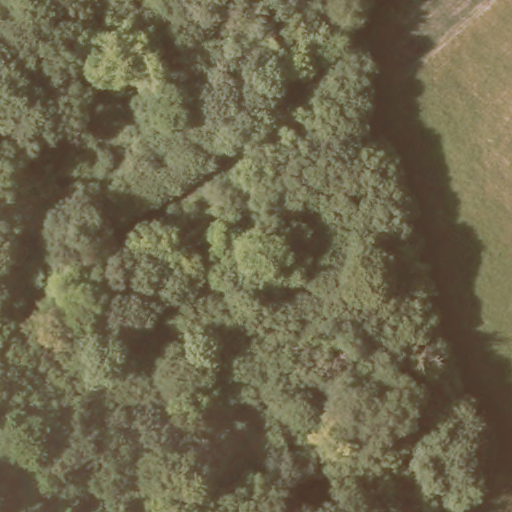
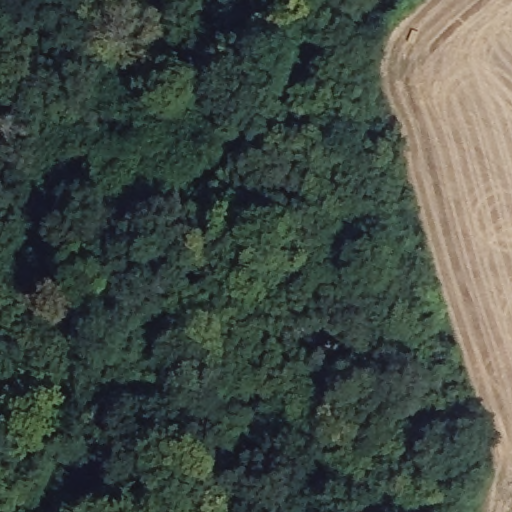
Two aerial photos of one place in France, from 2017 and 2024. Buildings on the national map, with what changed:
unchanged [(47,454),(65,438),(72,446),(55,462),(47,454)]

